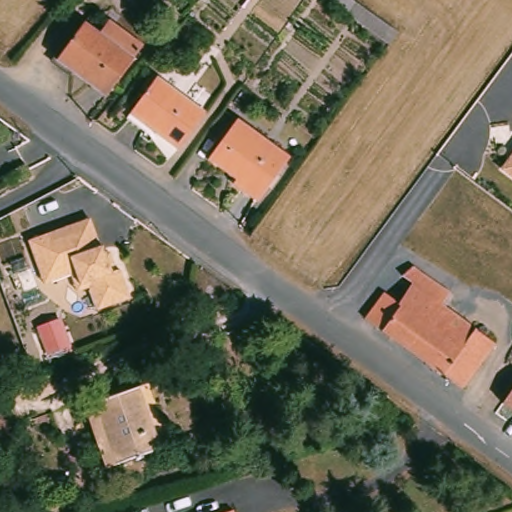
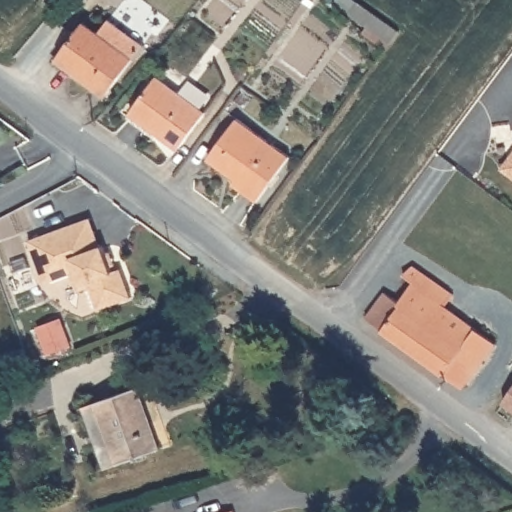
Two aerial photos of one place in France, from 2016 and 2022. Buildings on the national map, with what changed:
unchanged [(396,37),(354,9),(361,0),(365,0),(404,26),(396,37)]
unchanged [(91,21),(104,29),(113,18),(147,44),(110,90),(66,57),(91,21)]
unchanged [(160,79),(208,114),(183,150),(134,115),(160,79)]
unchanged [(244,118),(296,154),(266,198),(243,181),(244,177),(216,157),(244,118)]
unchanged [(503,166),(512,155),(512,173),(503,166)]
unchanged [(71,270),(50,275),(33,237),(87,216),(98,240),(105,238),(115,266),(124,264),(135,294),(103,305),(95,285),(78,289),(71,270)]
unchanged [(465,387),(401,341),(373,319),(395,286),(400,288),(423,263),(457,291),(448,303),(497,343),(465,387)]
unchanged [(147,382),(168,442),(105,463),(85,406),(147,382)]
unchanged [(508,398),(512,393),(512,400),(508,398)]
unchanged [(235,512),(221,512),(234,507),(235,512)]

